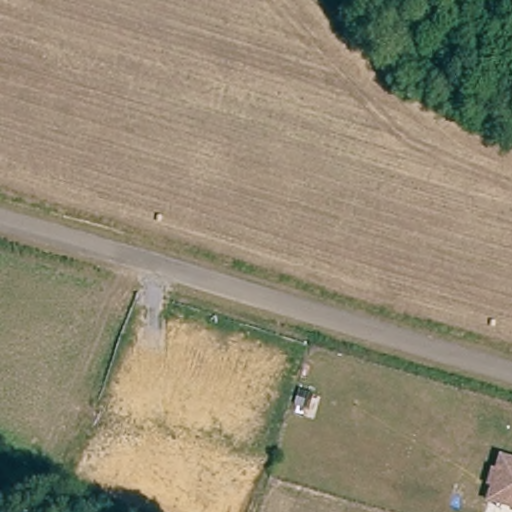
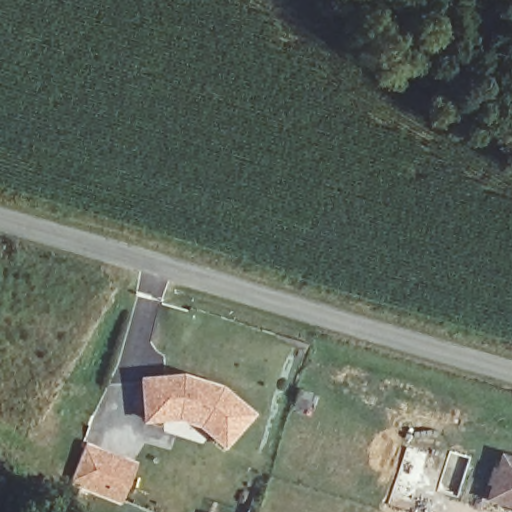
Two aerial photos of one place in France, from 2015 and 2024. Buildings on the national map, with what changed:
new [(181,375),(223,387),(256,415),(225,450),(198,426),(176,422),(142,423),(139,377),(181,375)]
new [(85,442),(142,464),(124,507),(69,485),(85,442)]
unchanged [(494,498),(496,492),(492,491),(496,475),(500,476),(504,461),(512,463),(512,504),(507,503),(494,498)]

